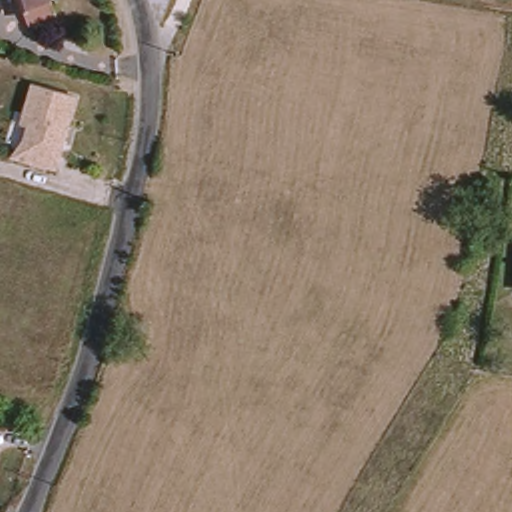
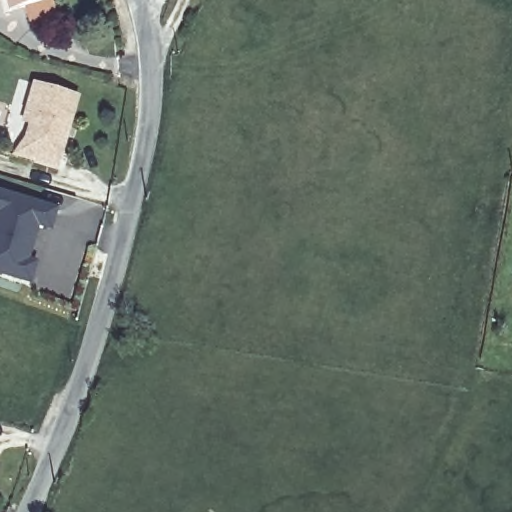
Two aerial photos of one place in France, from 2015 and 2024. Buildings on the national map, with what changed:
unchanged [(10,12),(7,0),(51,0),(52,0),(10,12)]
unchanged [(2,86),(0,85),(0,58),(9,61),(5,75),(2,86)]
unchanged [(19,151),(31,135),(35,120),(28,119),(30,110),(39,80),(82,93),(64,157),(62,164),(19,151)]
new [(52,230),(39,226),(29,261),(37,264),(30,284),(0,275),(0,193),(57,209),(52,230)]

